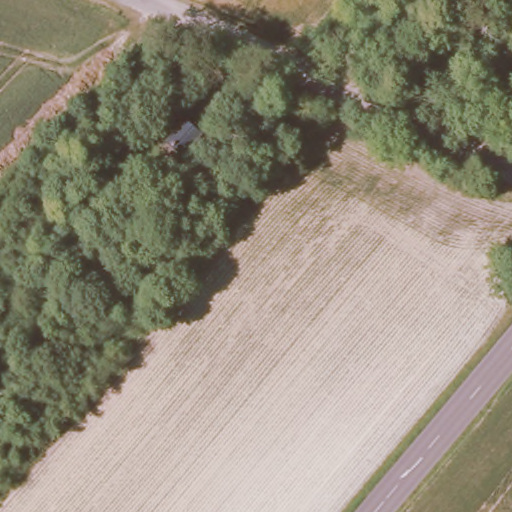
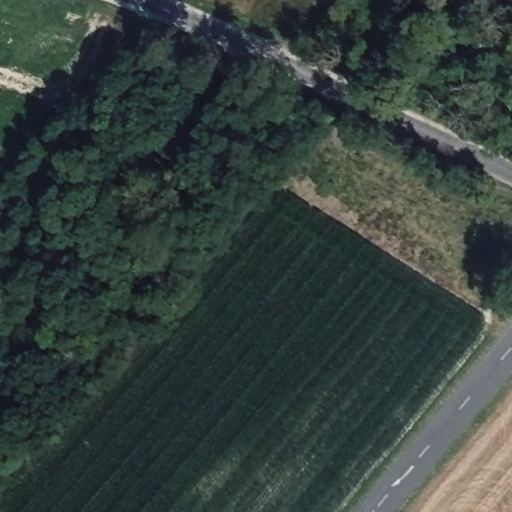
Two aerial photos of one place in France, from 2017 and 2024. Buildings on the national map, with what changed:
unchanged [(196,86),(211,99),(193,121),(176,108),(196,86)]

